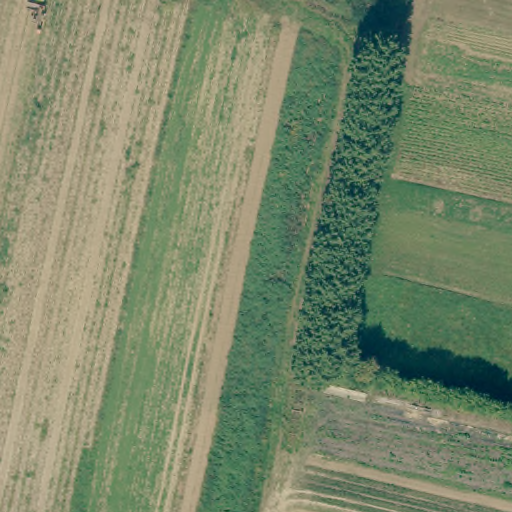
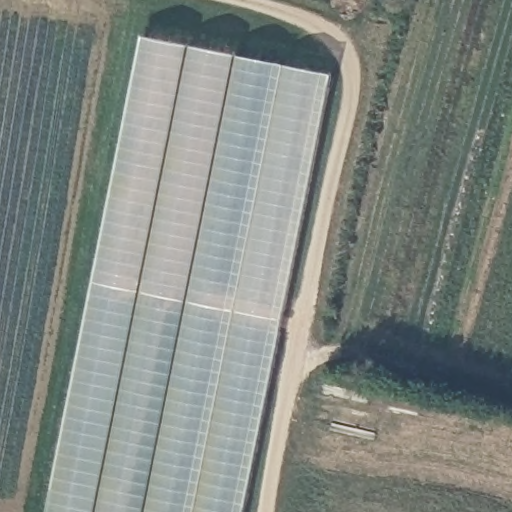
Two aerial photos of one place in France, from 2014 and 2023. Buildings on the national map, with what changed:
new [(144,36),(331,74),(243,512),(47,512),(144,36)]

